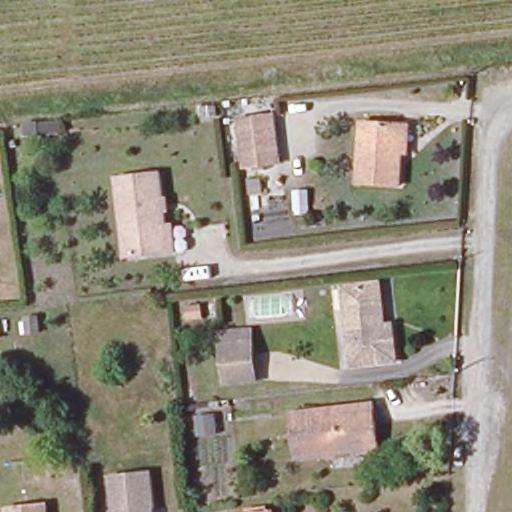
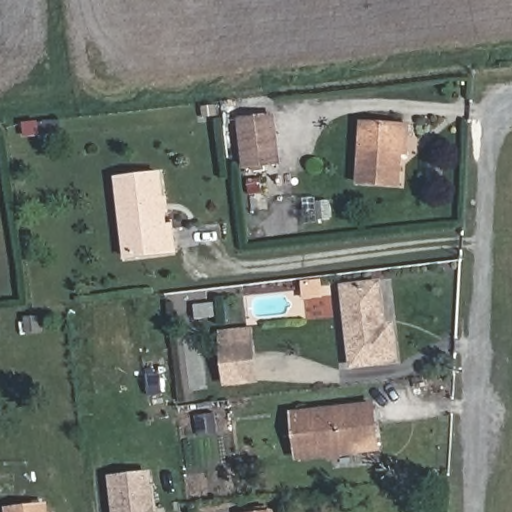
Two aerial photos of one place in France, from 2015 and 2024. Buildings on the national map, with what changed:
unchanged [(247,170),(242,121),(275,120),(277,166),(247,170)]
unchanged [(356,185),(359,120),(400,121),(409,123),(407,149),(398,147),(397,186),(356,185)]
unchanged [(122,260),(111,180),(153,176),(160,226),(170,226),(173,255),(122,260)]
unchanged [(379,322),(390,321),(395,360),(350,365),(341,285),(375,281),(379,322)]
unchanged [(258,379),(225,382),(220,341),(254,337),(258,379)]
unchanged [(212,421),(191,423),(189,407),(212,405),(212,421)]
unchanged [(376,450),(296,459),(290,417),(370,408),(376,450)]
unchanged [(149,512),(113,512),(110,476),(145,473),(149,512)]
unchanged [(46,512),(6,512),(6,509),(45,505),(46,512)]

